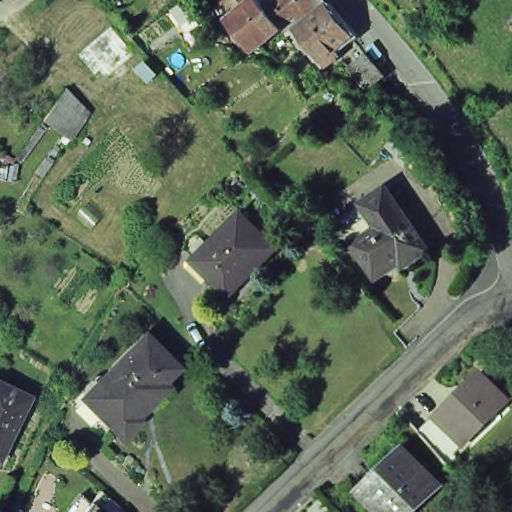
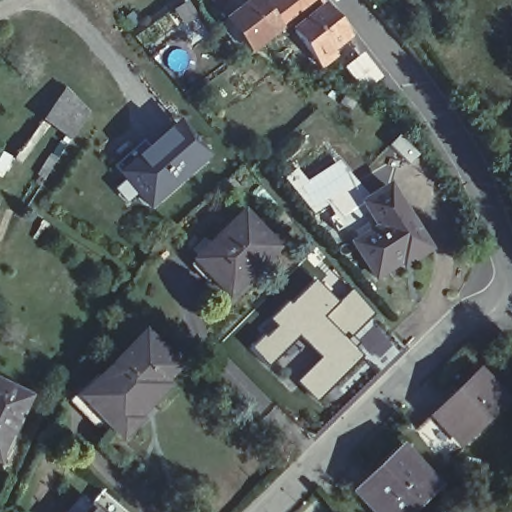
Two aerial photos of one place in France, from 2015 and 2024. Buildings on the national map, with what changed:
unchanged [(220,0),(271,0),(272,1),(273,0),(321,0),(322,1),(291,22),(286,25),(282,29),(250,50),(226,19),(232,15),(220,0)]
unchanged [(348,34),(332,49),(336,54),(325,64),(296,29),(325,5),(348,34)]
demolished [(82,58),(78,53),(83,49),(110,25),(135,53),(107,77),(99,68),(94,72),(82,58)]
unchanged [(383,77),(366,91),(346,66),(362,52),(383,77)]
unchanged [(67,134),(42,114),(61,90),(84,113),(67,134)]
new [(218,158),(152,216),(115,174),(181,114),(218,158)]
unchanged [(410,155),(401,165),(384,149),(382,146),(390,137),(393,139),(410,155)]
new [(298,172),(306,182),(337,161),(352,184),(312,212),(286,182),(298,172)]
unchanged [(435,257),(377,284),(360,249),(375,219),(365,198),(397,182),(435,257)]
unchanged [(282,244),(235,293),(199,259),(246,209),(282,244)]
new [(273,326),(267,320),(314,280),(336,303),(322,317),(348,342),(362,356),(316,402),(296,382),(319,358),(298,338),(269,368),(250,348),(273,326)]
new [(373,322),(395,344),(375,363),(353,337),(348,342),(322,317),(336,303),(350,289),(374,314),(370,319),(357,334),(358,335),(373,322)]
unchanged [(89,393),(154,334),(185,367),(170,381),(175,386),(157,401),(157,399),(142,413),(147,419),(145,421),(144,420),(130,433),(130,434),(130,436),(125,433),(89,393)]
unchanged [(487,366),(512,390),(512,396),(470,438),(443,411),(487,366)]
unchanged [(4,459),(0,457),(0,380),(25,391),(32,394),(32,396),(4,459)]
unchanged [(443,411),(470,438),(450,458),(425,429),(443,411)]
unchanged [(406,509),(403,512),(380,512),(360,491),(390,460),(396,466),(410,452),(441,484),(413,512),(408,512),(406,509)]
unchanged [(96,499),(107,507),(113,512),(85,512),(96,499)]

